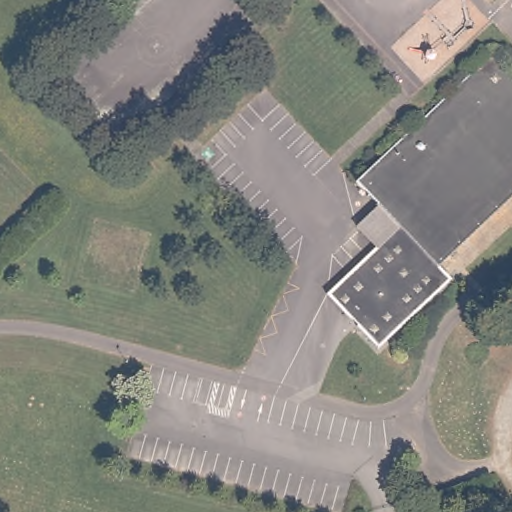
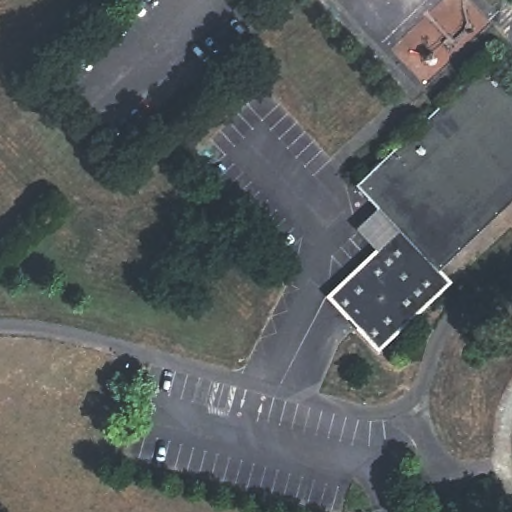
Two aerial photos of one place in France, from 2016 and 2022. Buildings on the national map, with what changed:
unchanged [(402,225),(380,203),(359,182),(493,55),(512,74),(512,193),(457,246),(459,247),(451,255),(449,254),(440,262),(455,278),(381,349),(328,295),(377,249),(402,225)]
unchanged [(380,203),(402,225),(377,249),(357,226),(380,203)]

